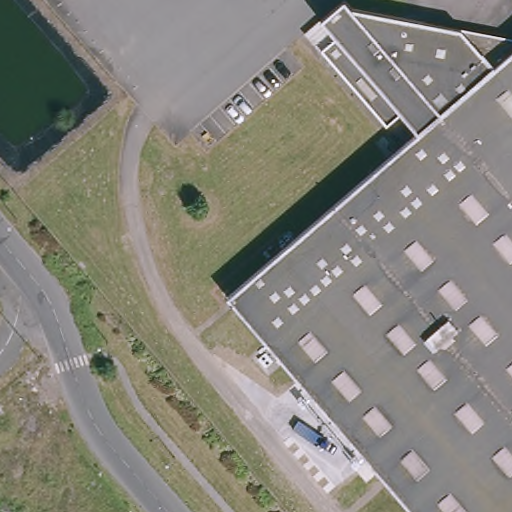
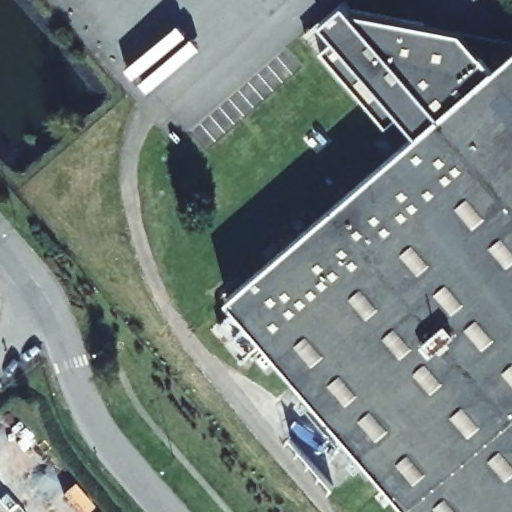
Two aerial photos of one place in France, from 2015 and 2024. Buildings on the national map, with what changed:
unchanged [(226,300),(341,203),(416,139),(399,118),(385,129),(321,54),(336,42),(324,23),(344,6),(512,35),(512,512),(408,512),(226,300)]

